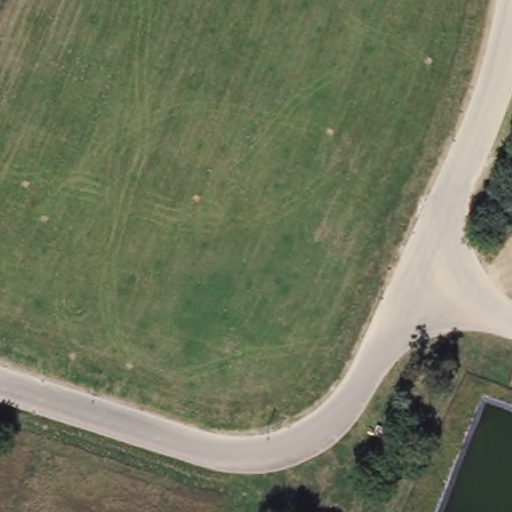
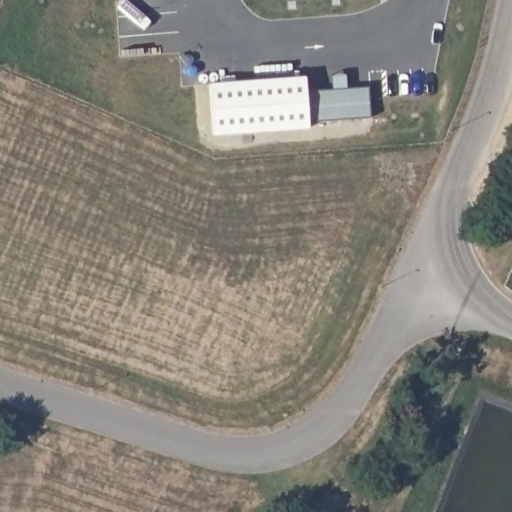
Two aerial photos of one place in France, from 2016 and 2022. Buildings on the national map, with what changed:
new [(371,118),(308,122),(309,128),(213,135),(209,83),(305,76),(306,92),(368,87),(371,118)]

